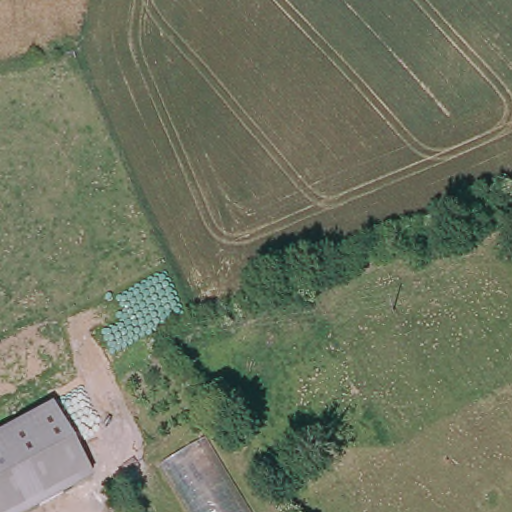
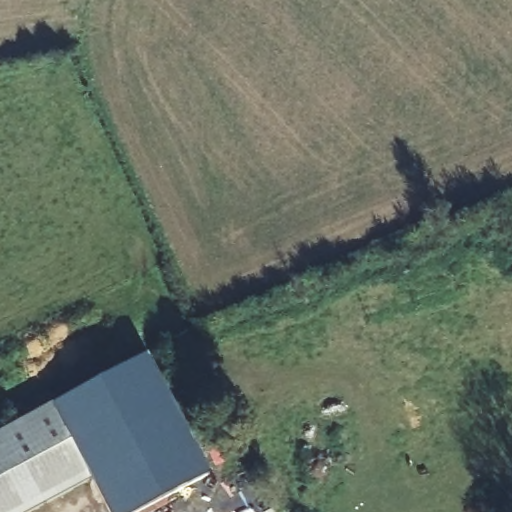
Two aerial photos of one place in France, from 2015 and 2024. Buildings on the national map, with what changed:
new [(89,480),(50,404),(144,356),(207,479),(143,512),(106,512),(89,480)]
unchanged [(50,404),(89,480),(27,512),(0,512),(0,430),(50,404)]

